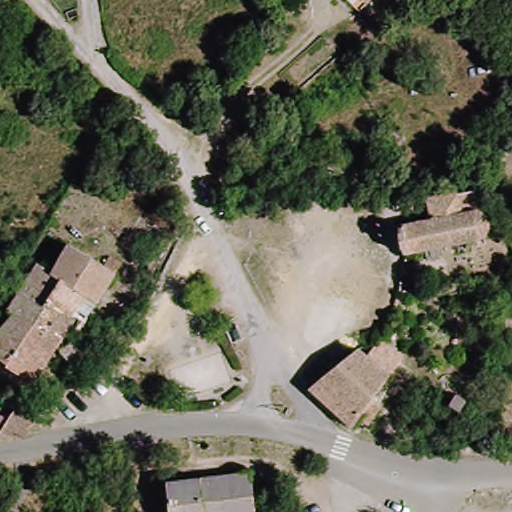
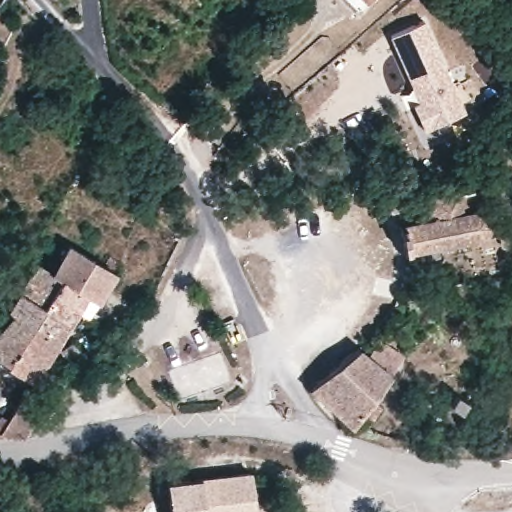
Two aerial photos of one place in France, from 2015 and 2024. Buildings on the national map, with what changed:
new [(424,20),(467,112),(425,132),(412,105),(420,102),(390,36),(424,20)]
unchanged [(486,209),(505,210),(506,220),(505,230),(407,246),(404,220),(437,218),(437,193),(484,186),(486,209)]
unchanged [(25,278),(29,270),(35,257),(56,269),(69,246),(105,267),(111,259),(120,264),(93,318),(87,314),(25,278)]
unchanged [(55,350),(25,333),(31,321),(8,311),(25,278),(87,314),(73,334),(68,330),(60,338),(89,362),(85,366),(80,372),(55,350)]
unchanged [(0,362),(0,323),(8,311),(31,321),(25,333),(55,350),(30,379),(0,362)]
unchanged [(310,381),(352,345),(388,371),(371,395),(376,404),(356,422),(310,381)]
unchanged [(0,419),(20,391),(46,407),(18,431),(13,434),(0,426),(0,419)]
unchanged [(251,472),(253,492),(204,498),(206,512),(169,512),(164,480),(251,472)]
unchanged [(253,492),(257,512),(206,512),(204,498),(253,492)]

